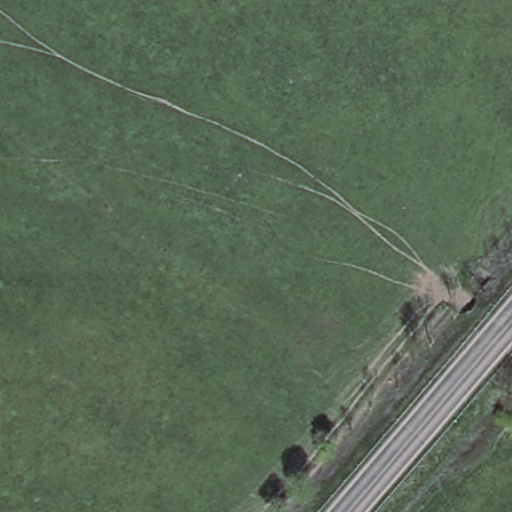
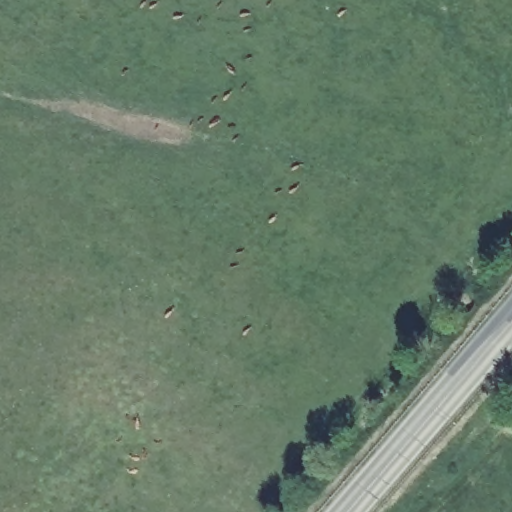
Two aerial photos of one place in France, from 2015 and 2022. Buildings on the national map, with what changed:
[]

